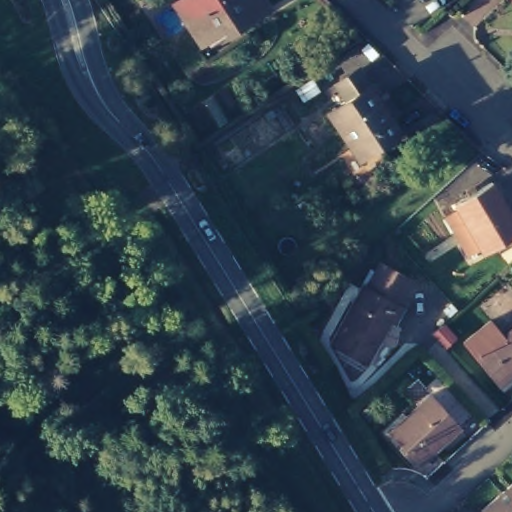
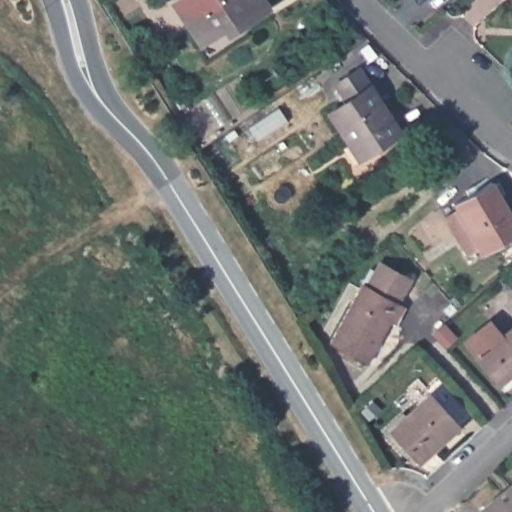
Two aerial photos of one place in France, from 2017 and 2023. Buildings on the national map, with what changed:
unchanged [(239,26),(235,20),(204,38),(179,0),(259,0),(266,9),(239,26)]
unchanged [(349,100),(340,88),(365,72),(404,130),(364,155),(334,111),(349,100)]
unchanged [(415,137),(410,129),(434,112),(440,119),(415,137)]
unchanged [(452,206),(488,180),(512,210),(512,237),(491,253),(452,206)]
unchanged [(332,346),(364,283),(370,286),(385,255),(415,268),(399,304),(407,308),(398,322),(394,320),(370,367),(332,346)]
unchanged [(500,382),(476,355),(512,325),(512,372),(500,382)]
unchanged [(414,462),(387,430),(425,398),(452,429),(414,462)]
unchanged [(482,511),(512,484),(512,485),(512,512),(483,512),(482,511)]

